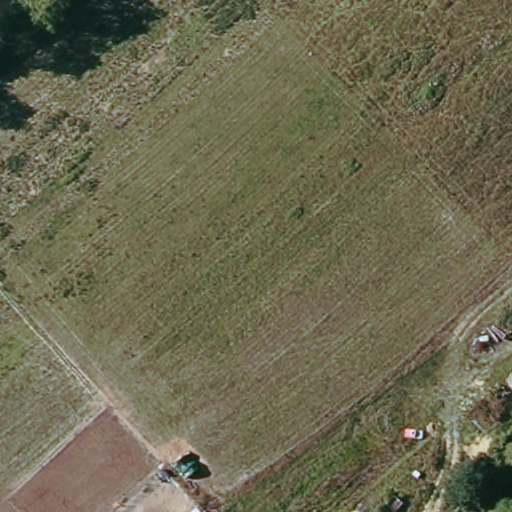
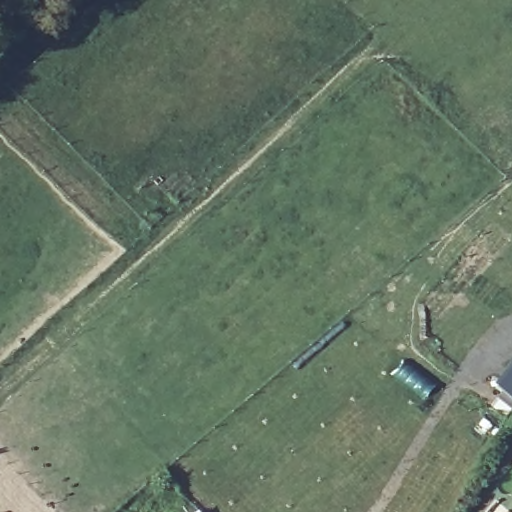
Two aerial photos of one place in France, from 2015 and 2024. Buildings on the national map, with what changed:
new [(492,384),(512,359),(512,401),(492,384)]
demolished [(202,512),(191,512),(197,507),(202,512)]

